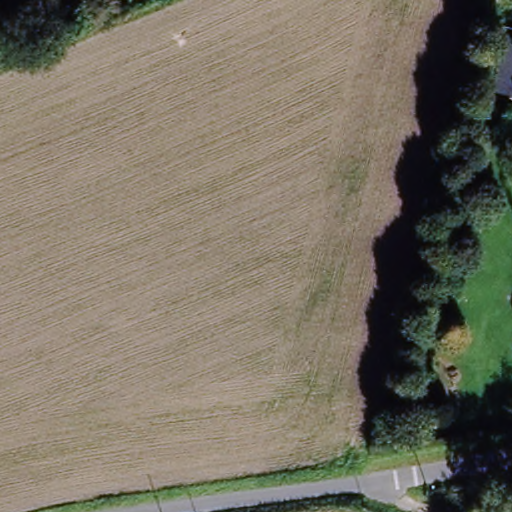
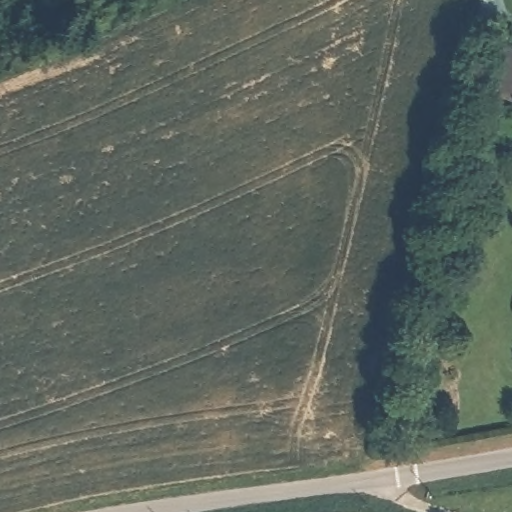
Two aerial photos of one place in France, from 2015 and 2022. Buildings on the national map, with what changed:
unchanged [(508,41),(512,42),(512,109),(492,103),(508,41)]

